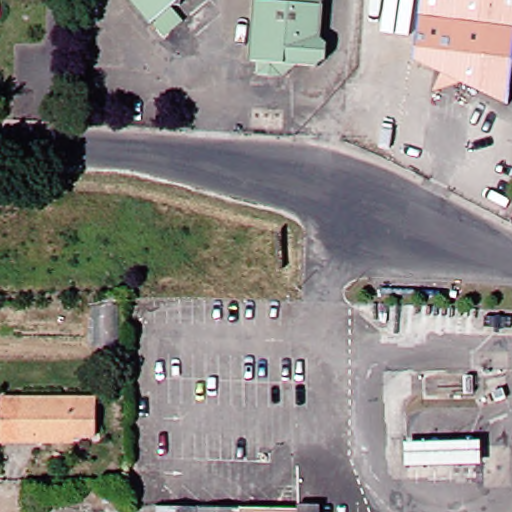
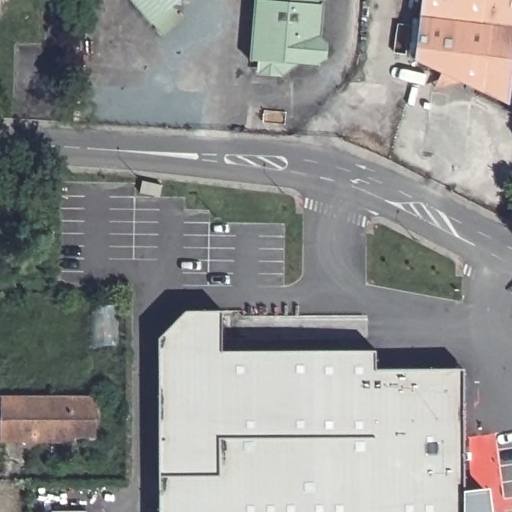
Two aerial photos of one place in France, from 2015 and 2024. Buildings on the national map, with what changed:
unchanged [(156,27),(133,0),(186,0),(156,27)]
unchanged [(265,60),(255,60),(261,0),(330,0),(324,65),(303,62),(290,76),(264,75),(265,60)]
unchanged [(443,72),(415,60),(422,0),(512,0),(512,84),(510,105),(461,81),(434,91),(443,72)]
new [(185,311),(219,311),(218,351),(373,350),(373,369),(462,369),(464,490),(489,487),(492,512),(158,512),(158,338),(185,311)]
unchanged [(45,443),(5,442),(8,426),(8,398),(104,400),(103,438),(80,438),(80,444),(45,443)]
demolished [(161,512),(161,506),(261,507),(260,512),(161,512)]

